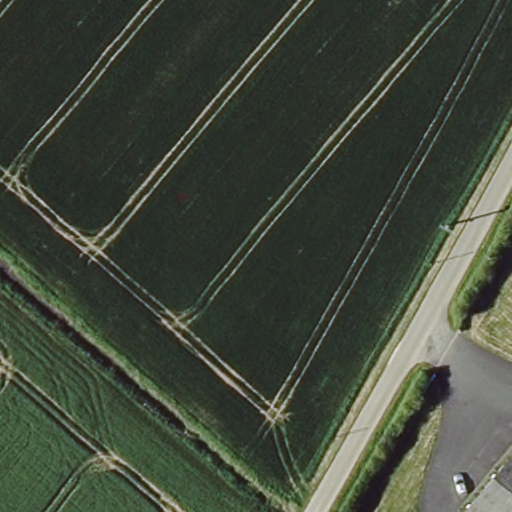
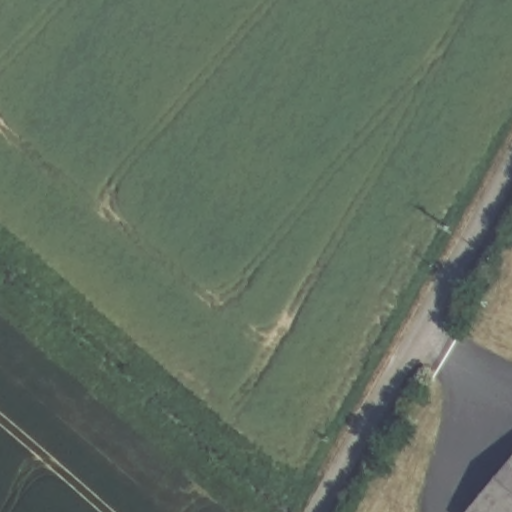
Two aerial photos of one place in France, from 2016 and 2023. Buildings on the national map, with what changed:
unchanged [(512,455),(512,512),(468,512),(466,509),(512,455)]

